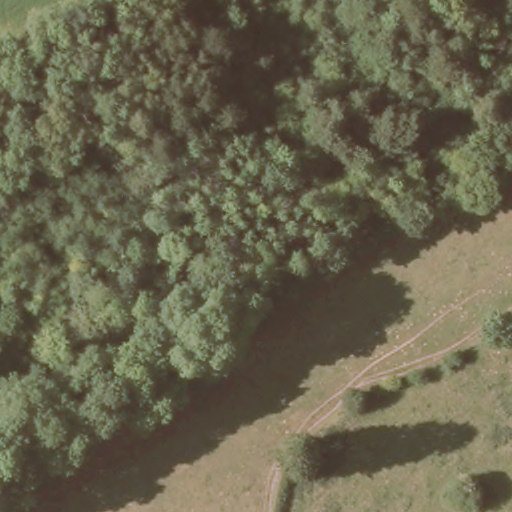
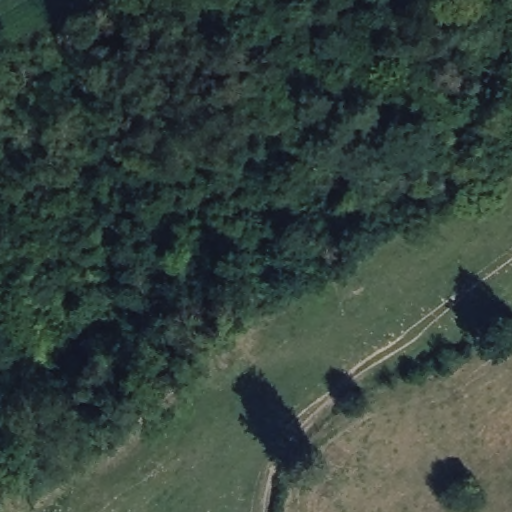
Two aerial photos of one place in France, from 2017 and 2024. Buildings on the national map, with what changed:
[]

